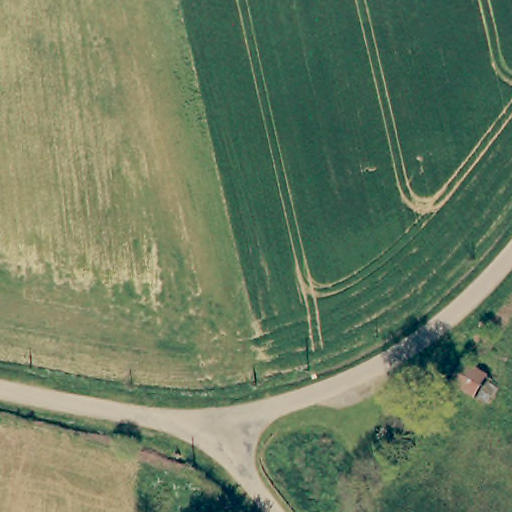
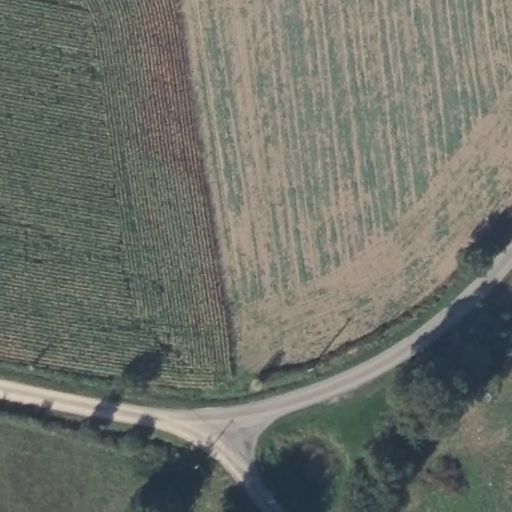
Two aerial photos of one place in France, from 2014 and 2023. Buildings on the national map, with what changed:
unchanged [(487,377),(475,396),(449,381),(461,360),(487,377)]

